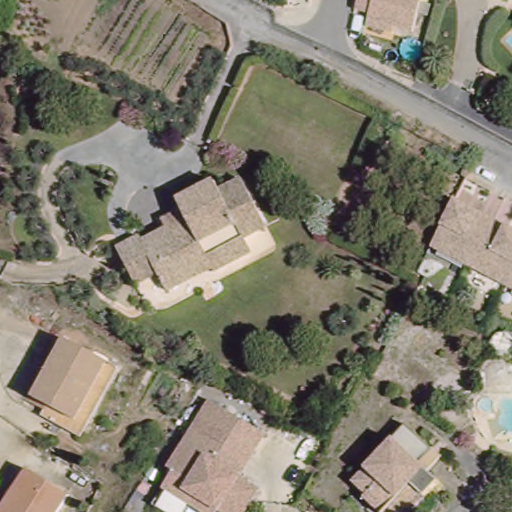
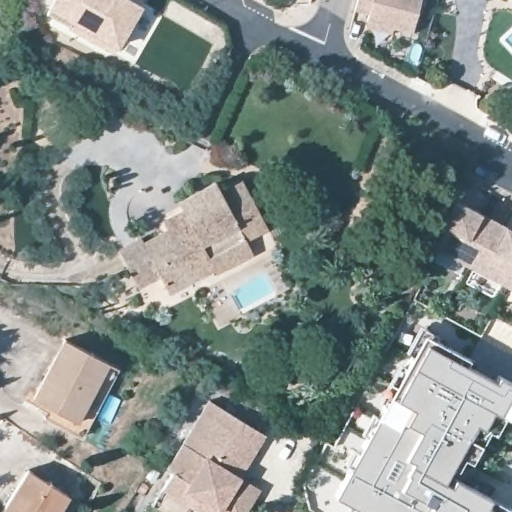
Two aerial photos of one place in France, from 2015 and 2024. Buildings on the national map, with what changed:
new [(54,0),(130,0),(140,5),(114,51),(46,15),(54,0)]
unchanged [(355,6),(356,0),(419,0),(411,29),(395,24),(393,30),(366,22),(367,16),(369,10),(355,6)]
unchanged [(130,281),(114,250),(138,238),(140,242),(185,218),(176,200),(213,181),(218,192),(240,180),(265,227),(243,238),(251,253),(213,272),(211,268),(165,293),(160,282),(156,275),(133,287),(130,281)]
unchanged [(432,245),(455,199),(493,219),(512,229),(512,288),(432,245)]
unchanged [(28,388),(60,330),(113,358),(82,414),(75,427),(37,407),(43,395),(28,388)]
new [(469,359),(465,365),(495,382),(498,376),(512,383),(512,382),(512,419),(503,414),(493,431),(488,429),(471,459),(463,455),(456,467),(449,464),(441,479),(451,484),(454,478),(489,496),(512,509),(512,512),(366,512),(336,494),(423,334),(469,359)]
unchanged [(163,479),(173,464),(168,460),(212,392),(266,427),(240,469),(260,482),(241,512),(233,512),(219,502),(213,511),(191,496),(163,479)]
demolished [(365,497),(367,495),(354,483),(366,469),(407,426),(434,451),(422,464),(429,471),(438,480),(424,496),(410,512),(380,512),(365,497)]
unchanged [(31,465),(73,492),(61,512),(3,512),(31,465)]

